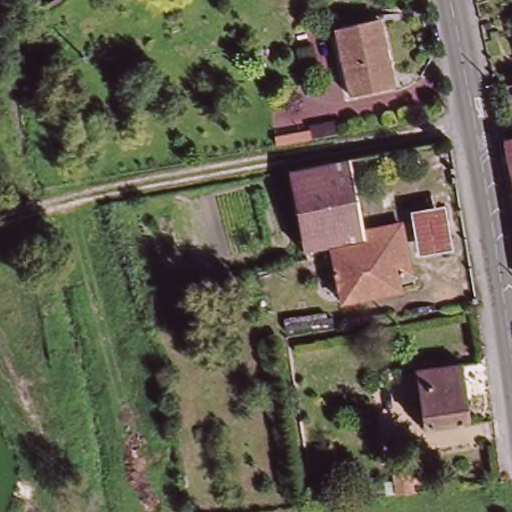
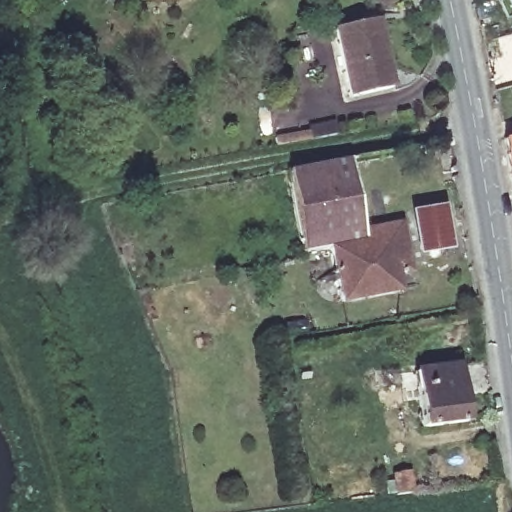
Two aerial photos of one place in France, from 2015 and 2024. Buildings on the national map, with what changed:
unchanged [(398,86),(356,96),(342,29),(383,20),(398,86)]
unchanged [(512,145),(512,171),(507,146),(512,145)]
unchanged [(405,230),(413,281),(403,282),(404,293),(344,303),(335,249),(303,253),(290,173),(352,163),(364,235),(380,234),(405,230)]
unchanged [(456,255),(421,262),(413,218),(448,208),(456,255)]
unchanged [(462,372),(468,423),(424,428),(418,376),(462,372)]

